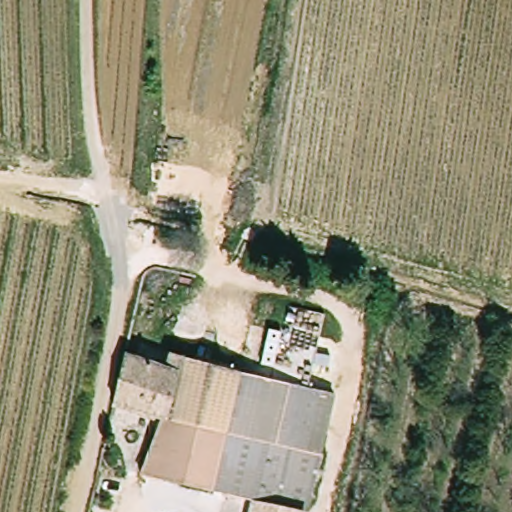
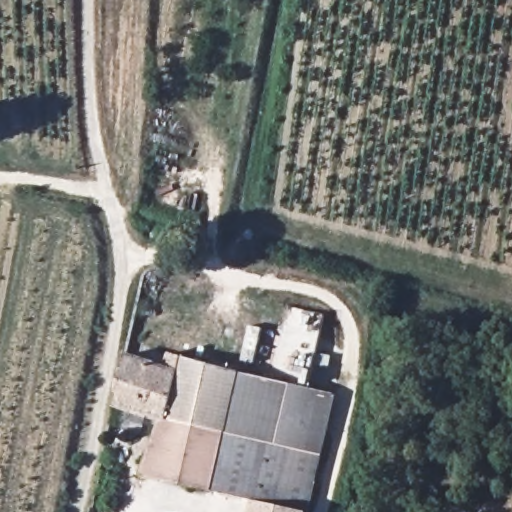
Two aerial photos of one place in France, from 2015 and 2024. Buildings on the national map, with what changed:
unchanged [(133,352),(175,365),(190,369),(180,423),(171,421),(120,406),(133,352)]
unchanged [(185,485),(145,473),(171,421),(180,423),(190,369),(175,365),(178,352),(219,363),(338,397),(325,448),(322,461),(309,512),(286,512),(277,510),(185,485)]
unchanged [(286,512),(246,512),(248,502),(286,512)]

